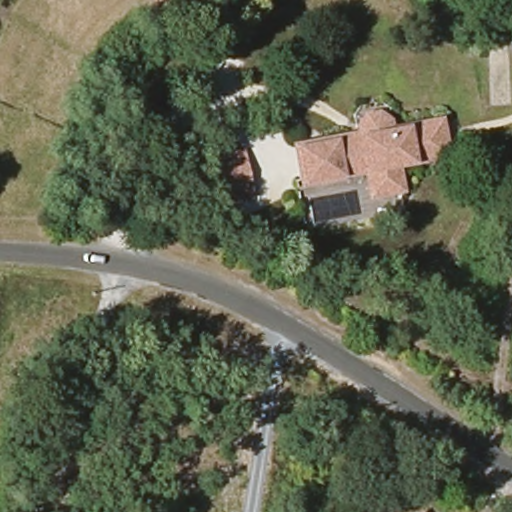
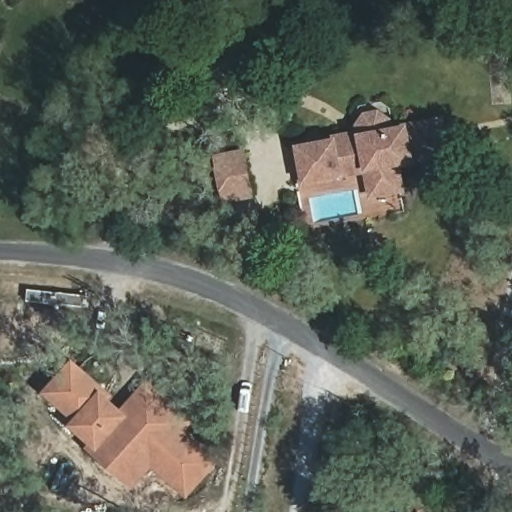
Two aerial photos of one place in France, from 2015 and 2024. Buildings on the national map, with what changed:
unchanged [(368,195),(365,169),(319,177),(298,180),(293,145),(311,143),(358,135),(357,115),(383,110),(386,127),(432,122),(438,156),(400,163),(403,189),(368,195)]
unchanged [(251,197),(219,204),(212,156),(242,151),(251,197)]
new [(132,488),(88,446),(91,442),(71,423),(74,420),(44,391),(74,358),(112,395),(111,397),(123,407),(147,378),(195,422),(188,429),(220,460),(187,497),(152,467),(132,488)]

